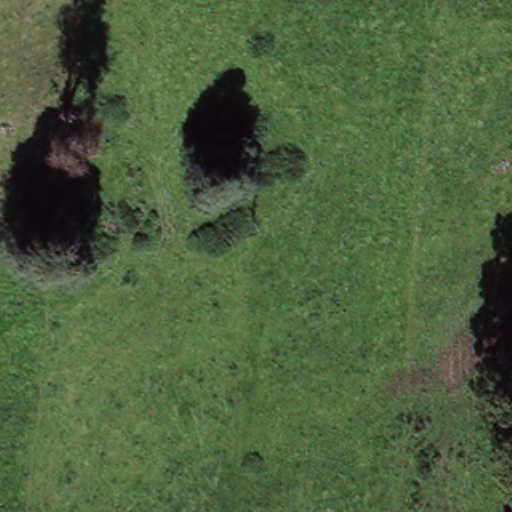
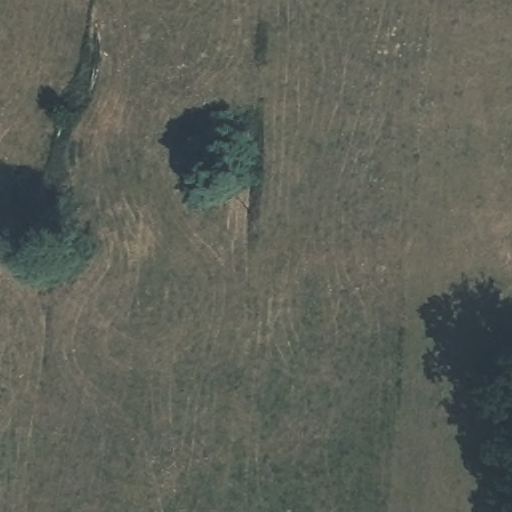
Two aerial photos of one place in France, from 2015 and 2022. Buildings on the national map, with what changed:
[]

